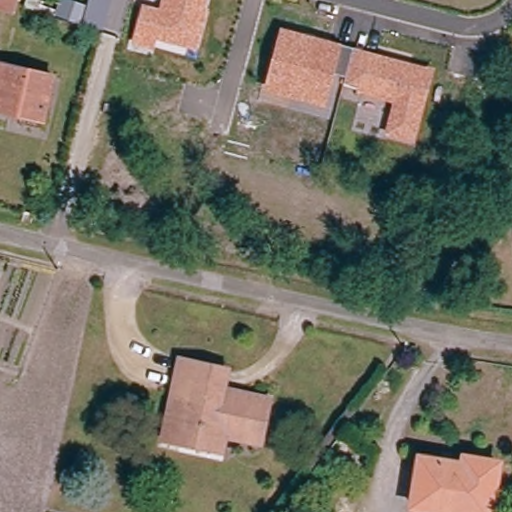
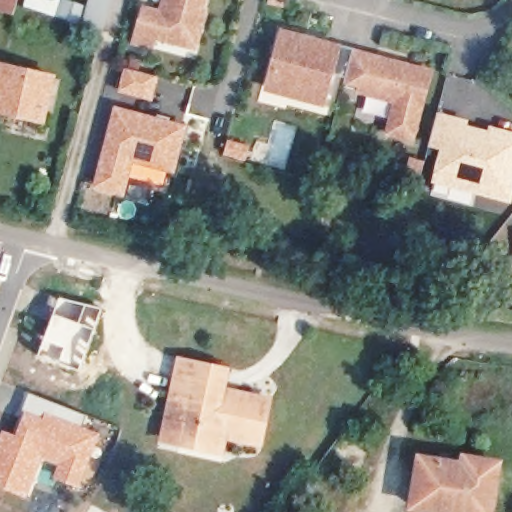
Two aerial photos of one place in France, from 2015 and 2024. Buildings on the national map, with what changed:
unchanged [(10,0),(8,7),(0,5),(0,0),(10,0)]
unchanged [(50,17),(54,0),(59,0),(89,5),(91,0),(113,0),(105,31),(50,17)]
unchanged [(140,5),(158,10),(160,0),(207,0),(204,9),(209,10),(199,50),(156,39),(153,50),(131,45),(140,5)]
unchanged [(341,44),(433,69),(415,144),(384,135),(392,103),(357,94),(358,87),(343,84),(345,76),(334,74),(326,107),(263,91),(279,28),(341,44)]
unchanged [(53,79),(43,122),(0,113),(0,67),(53,79)]
new [(132,162),(123,197),(93,190),(114,105),(187,124),(174,172),(132,162)]
new [(441,149),(430,147),(437,113),(468,120),(467,126),(488,131),(490,126),(512,131),(512,201),(433,182),(441,149)]
new [(78,371),(37,357),(52,315),(60,297),(101,308),(93,328),(78,371)]
unchanged [(170,376),(173,360),(220,367),(219,383),(216,395),(228,396),(263,402),(257,445),(223,440),(220,452),(178,446),(161,443),(164,425),(170,376)]
new [(28,393),(86,415),(81,427),(100,435),(79,489),(52,480),(57,465),(41,460),(26,498),(0,488),(0,435),(2,430),(17,435),(25,412),(21,411),(28,393)]
unchanged [(463,465),(464,458),(498,463),(490,512),(452,512),(413,507),(421,460),(463,465)]

